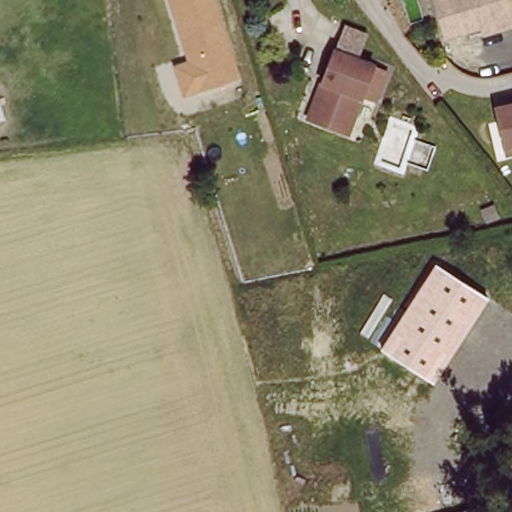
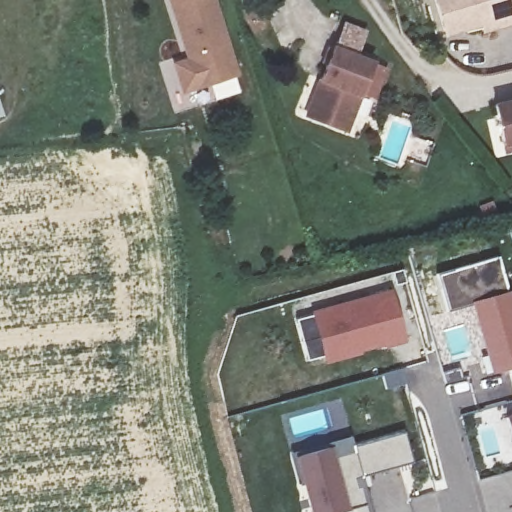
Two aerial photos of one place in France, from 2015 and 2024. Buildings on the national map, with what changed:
unchanged [(184,95),(174,64),(187,59),(169,0),(217,0),(243,76),(184,95)]
unchanged [(512,0),(512,21),(487,30),(485,22),(448,35),(436,0),(512,0)]
unchanged [(320,81),(332,49),(383,69),(379,77),(383,79),(374,101),(360,96),(345,132),(312,120),(305,116),(320,81)]
unchanged [(508,146),(499,106),(512,104),(512,152),(510,153),(508,146)]
new [(498,255),(509,290),(512,289),(512,375),(511,369),(493,373),(471,303),(447,310),(436,273),(498,255)]
new [(391,288),(408,341),(327,365),(312,312),(391,288)]
new [(512,414),(512,433),(507,415),(512,414)]
new [(353,435),(356,447),(406,433),(414,462),(365,475),(374,512),(312,512),(297,450),(353,435)]
demolished [(470,505),(471,512),(440,512),(470,505)]

